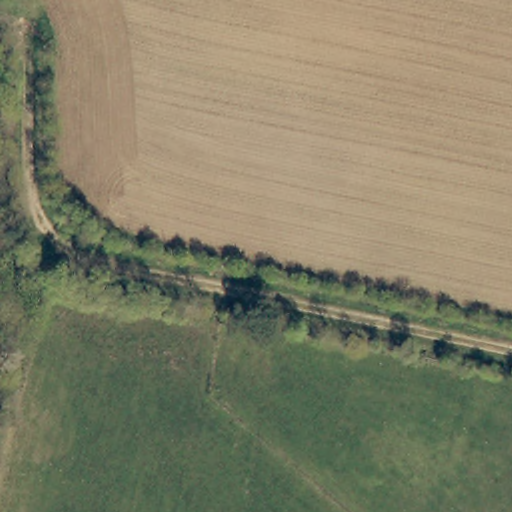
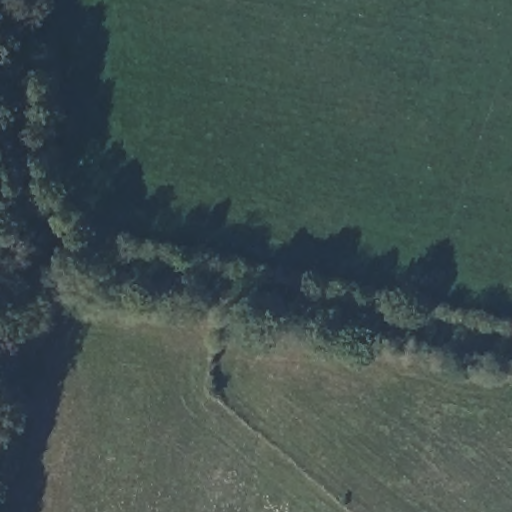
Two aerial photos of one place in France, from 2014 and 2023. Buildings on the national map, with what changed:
[]

